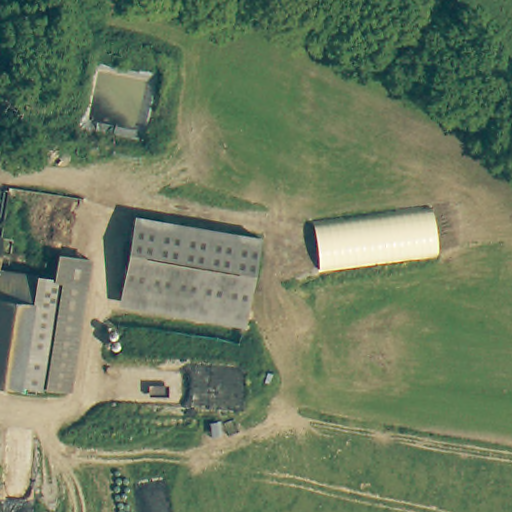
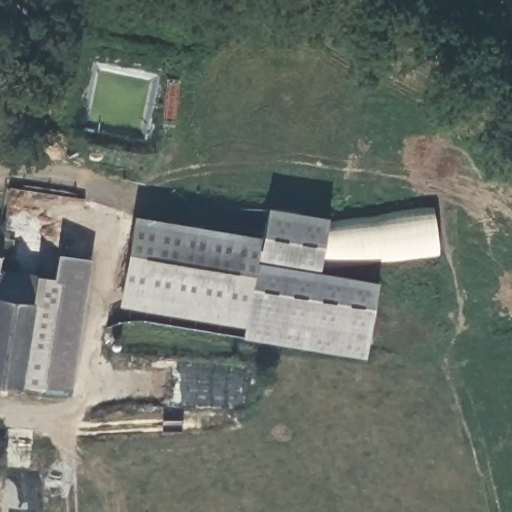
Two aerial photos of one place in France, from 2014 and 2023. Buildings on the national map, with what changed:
unchanged [(431,208),(438,253),(320,269),(312,224),(431,208)]
new [(263,246),(269,209),(330,218),(329,222),(312,224),(320,269),(319,274),(381,283),(367,359),(244,339),(247,319),(258,245),(263,246)]
unchanged [(258,245),(247,319),(121,299),(132,225),(258,245)]
unchanged [(48,282),(53,254),(83,258),(65,394),(18,388),(31,279),(48,282)]
unchanged [(31,279),(18,388),(18,392),(0,390),(0,276),(31,279)]

